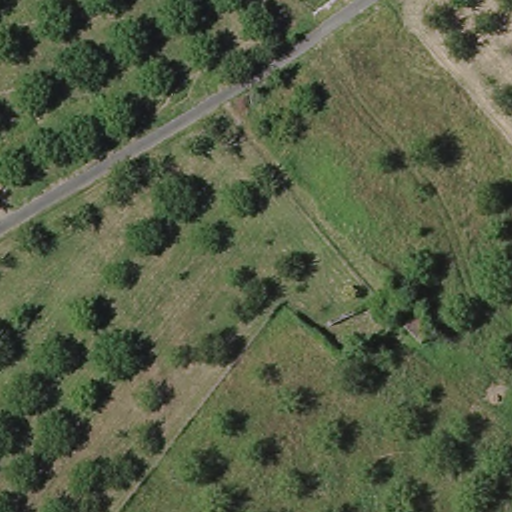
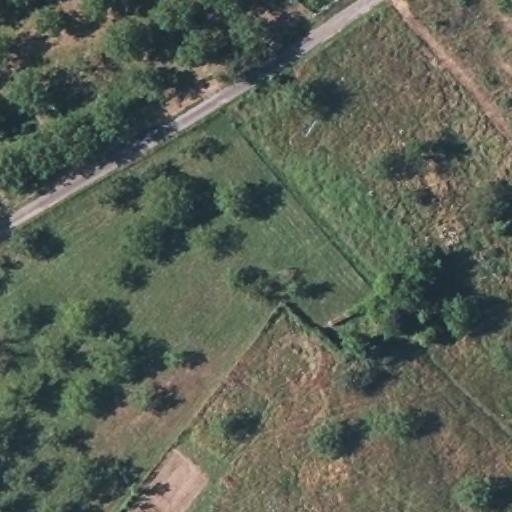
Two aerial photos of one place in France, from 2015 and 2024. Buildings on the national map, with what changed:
unchanged [(417,311),(431,324),(418,336),(404,324),(417,311)]

